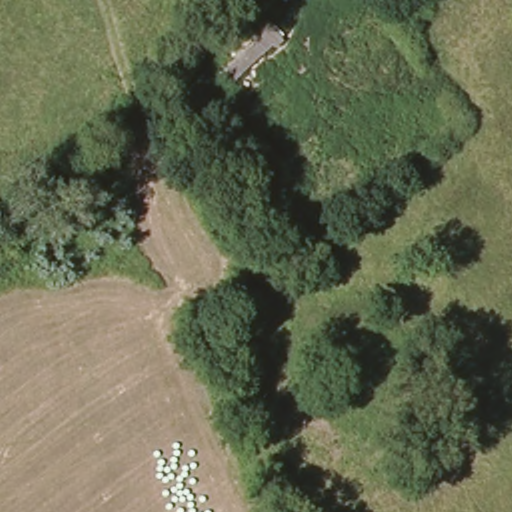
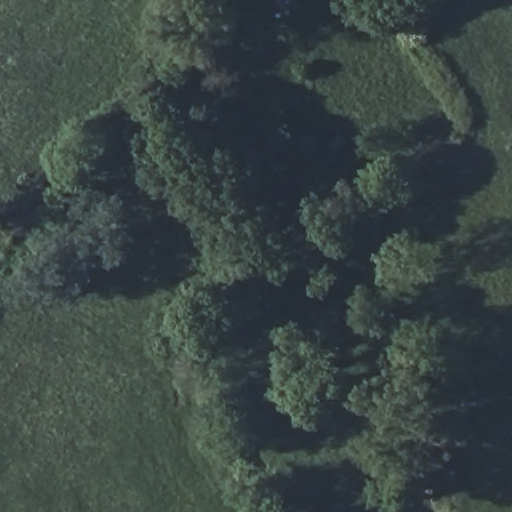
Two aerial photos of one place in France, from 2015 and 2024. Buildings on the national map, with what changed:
[]

